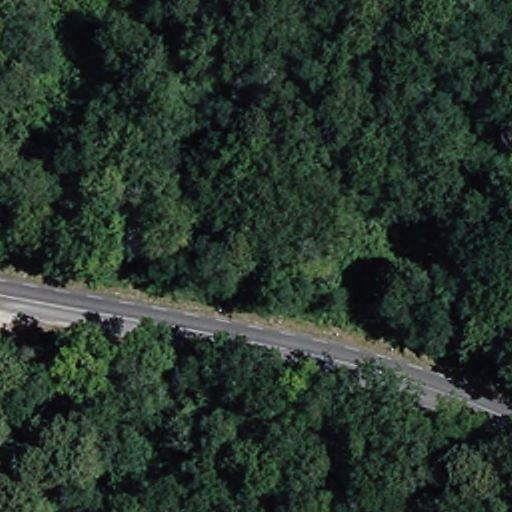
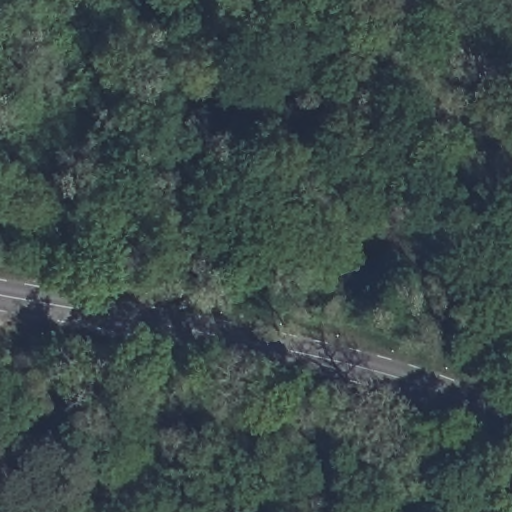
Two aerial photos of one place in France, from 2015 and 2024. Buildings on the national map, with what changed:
[]

